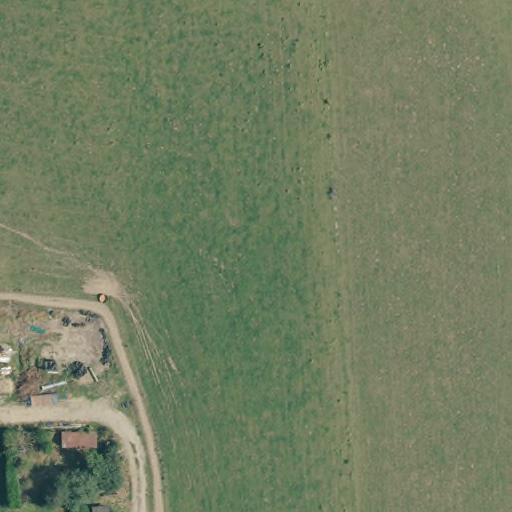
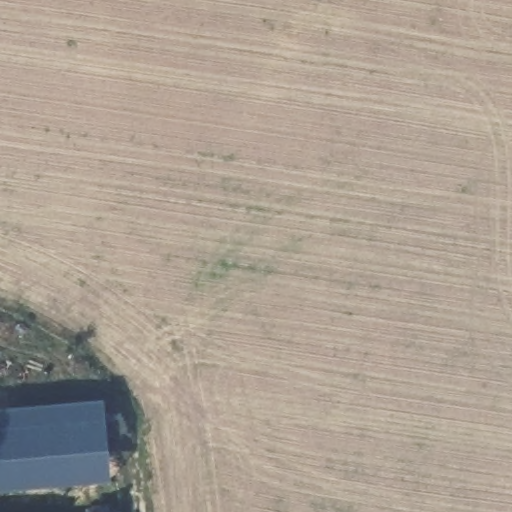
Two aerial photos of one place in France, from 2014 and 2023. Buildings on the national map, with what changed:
new [(102,401),(109,485),(0,494),(0,411),(102,401)]
unchanged [(100,505),(106,506),(108,511),(108,512),(96,512),(97,510),(100,505)]

